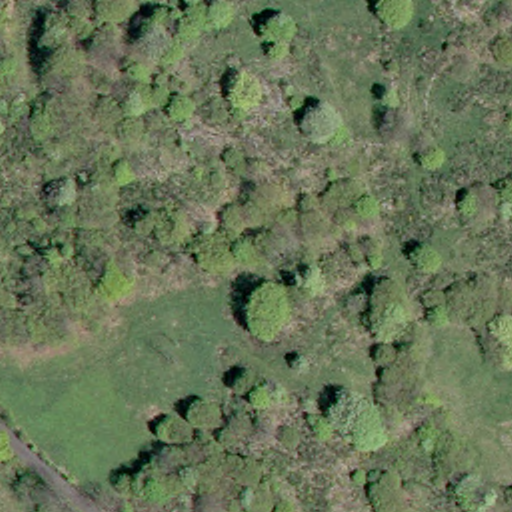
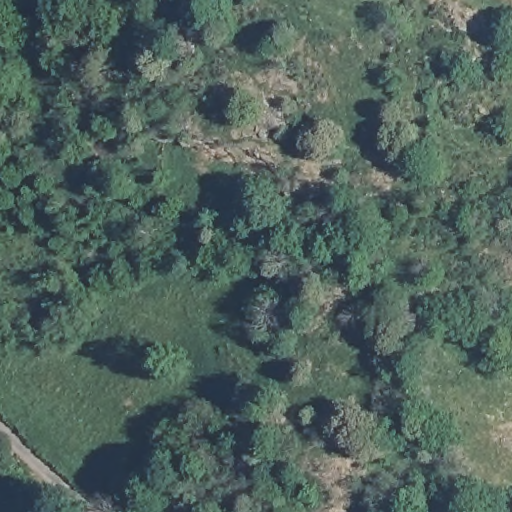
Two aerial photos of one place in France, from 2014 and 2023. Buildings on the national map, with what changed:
[]

